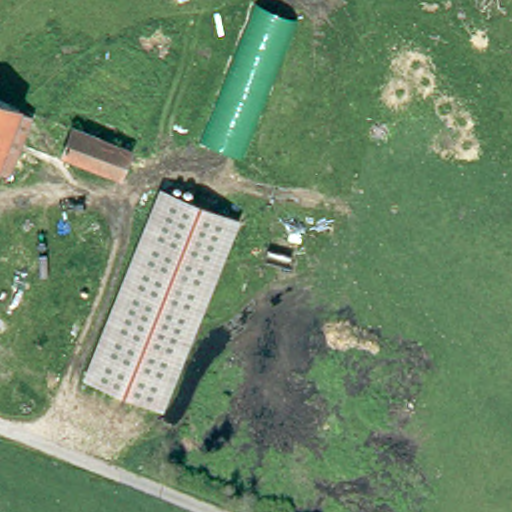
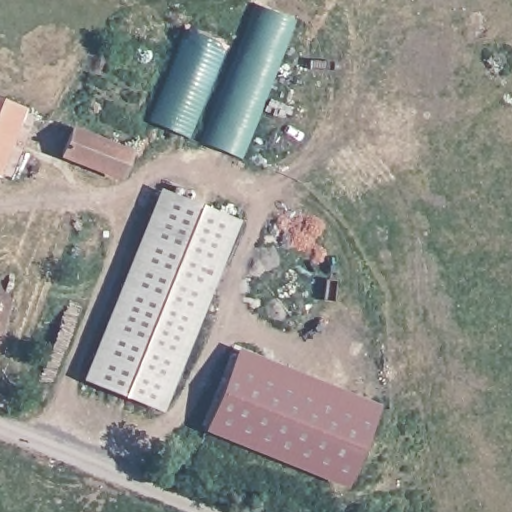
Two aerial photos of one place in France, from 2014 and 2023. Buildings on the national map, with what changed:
unchanged [(297,18),(244,154),(202,139),(257,0),(297,18)]
new [(230,46),(194,134),(150,118),(186,28),(230,46)]
unchanged [(0,173),(0,106),(8,109),(19,114),(30,118),(7,176),(0,173)]
unchanged [(120,175),(65,153),(74,129),(123,148),(130,151),(120,175)]
unchanged [(240,218),(162,410),(84,380),(159,188),(240,218)]
new [(347,488),(205,430),(239,345),(382,403),(347,488)]

